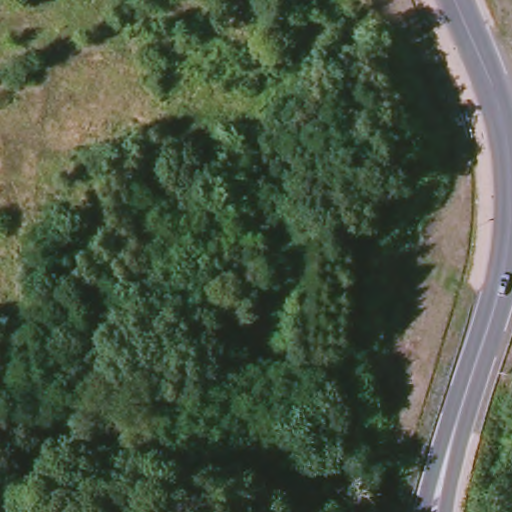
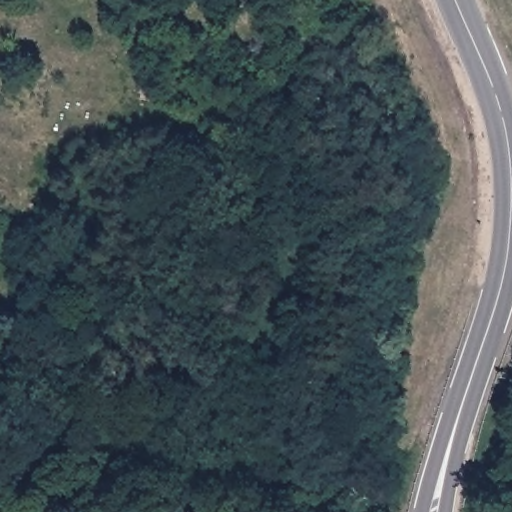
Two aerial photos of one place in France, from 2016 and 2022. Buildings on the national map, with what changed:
unchanged [(381,166),(397,163),(400,178),(384,181),(381,166)]

